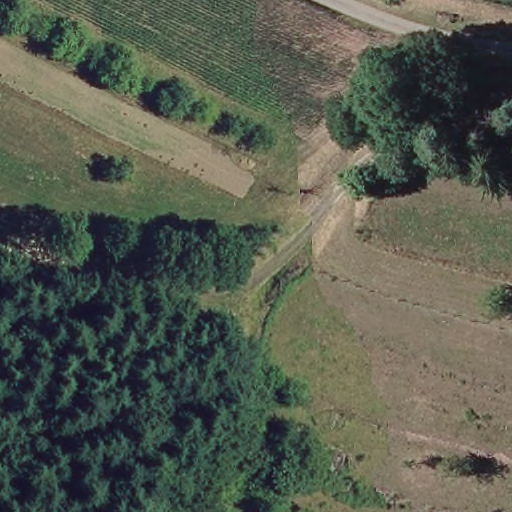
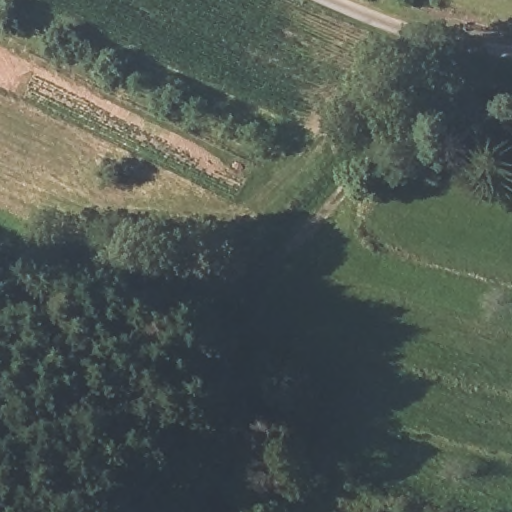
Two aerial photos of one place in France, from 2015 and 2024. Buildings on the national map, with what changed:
unchanged [(306,450),(334,458),(326,485),(297,475),(306,450)]

